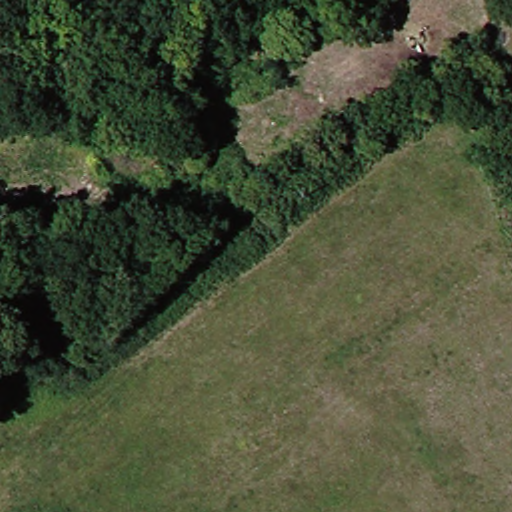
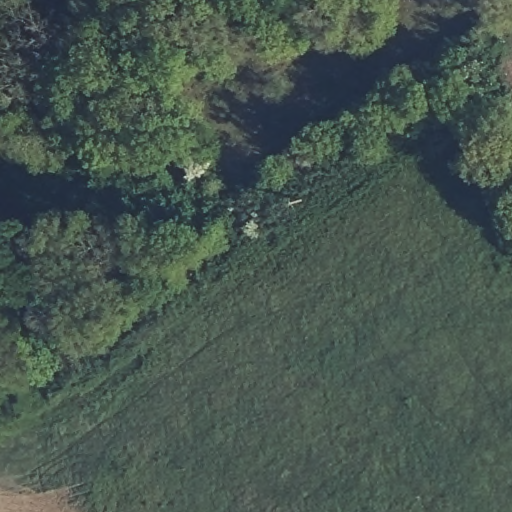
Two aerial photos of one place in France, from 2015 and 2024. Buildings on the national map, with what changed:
[]

